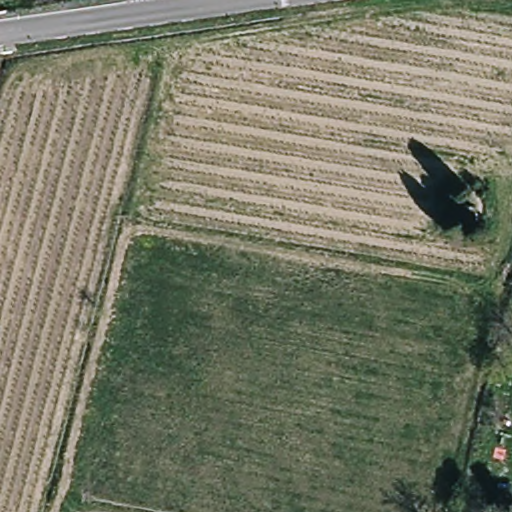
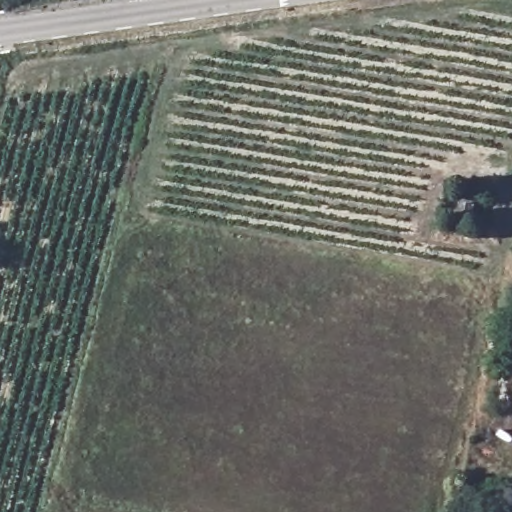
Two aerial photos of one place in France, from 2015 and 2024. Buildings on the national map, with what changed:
[]

